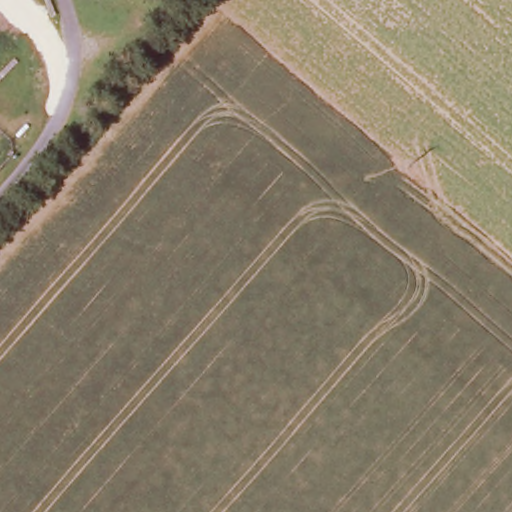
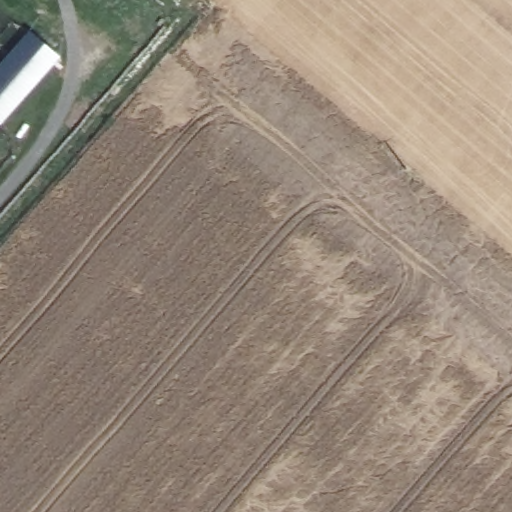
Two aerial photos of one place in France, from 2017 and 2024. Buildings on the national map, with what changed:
new [(1,124),(0,123),(0,64),(30,30),(60,57),(1,124)]

